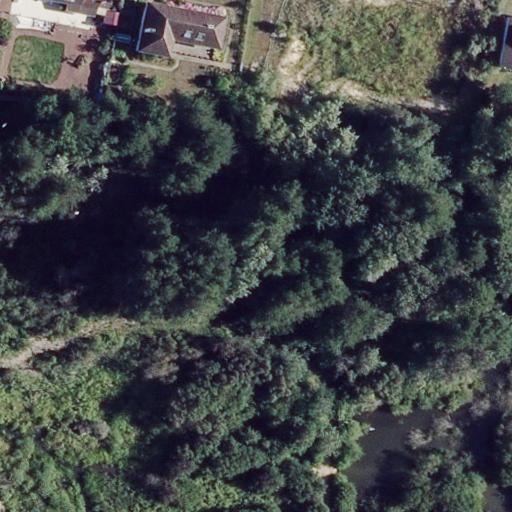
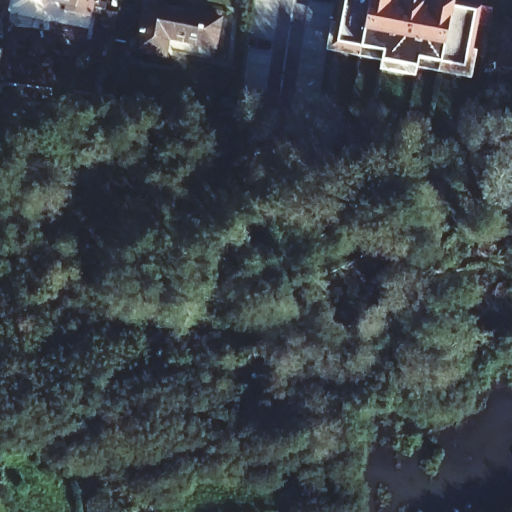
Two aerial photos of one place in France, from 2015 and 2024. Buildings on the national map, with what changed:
unchanged [(98,4),(110,5),(108,14),(96,11),(95,16),(76,13),(77,9),(34,0),(99,0),(98,4)]
new [(330,24),(335,25),(340,0),(444,0),(455,2),(482,7),(492,9),(489,26),(478,25),(473,50),(477,50),(471,80),(416,70),(414,76),(381,70),(382,63),(325,51),(330,24)]
unchanged [(222,16),(217,46),(165,36),(162,54),(137,49),(146,2),(222,16)]
unchanged [(496,67),(506,19),(512,20),(512,71),(496,67)]

